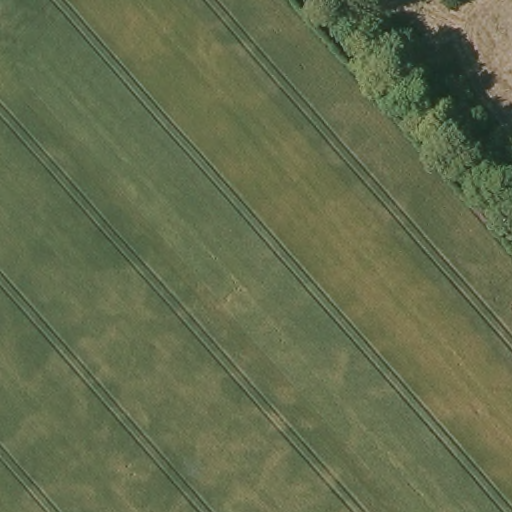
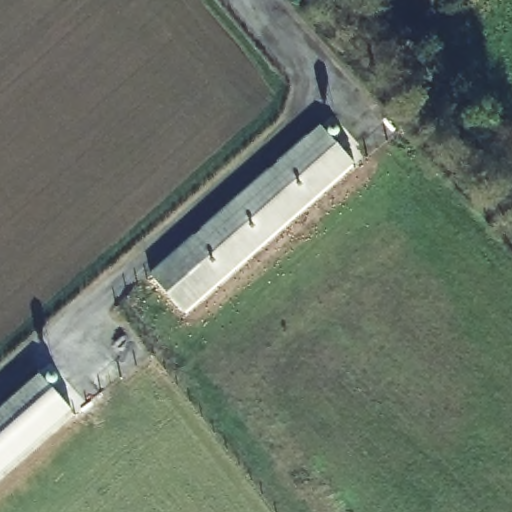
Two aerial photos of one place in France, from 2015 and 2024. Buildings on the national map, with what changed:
new [(322,132),(356,166),(189,312),(156,275),(322,132)]
new [(40,373),(73,411),(0,475),(0,408),(40,373)]

